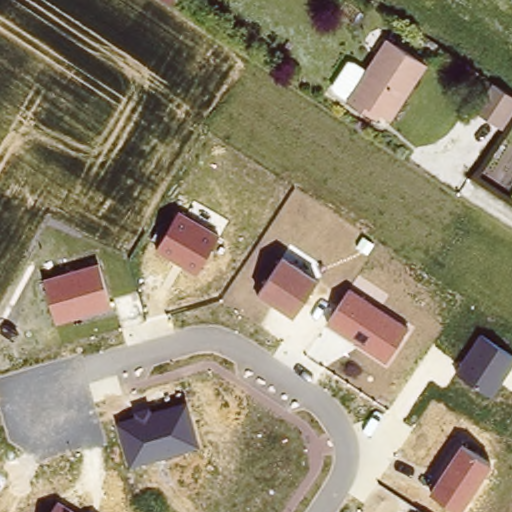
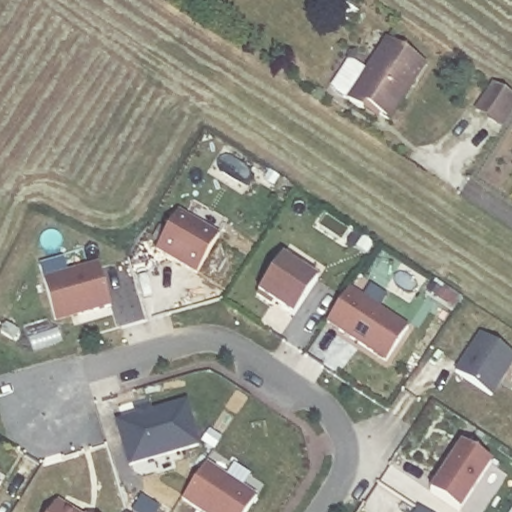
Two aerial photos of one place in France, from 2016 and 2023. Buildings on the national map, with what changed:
unchanged [(159,0),(166,0),(164,3),(159,0)]
unchanged [(361,109),(347,100),(388,39),(424,63),(388,115),(378,108),(372,117),(361,109)]
unchanged [(509,97),(512,98),(512,121),(506,130),(492,121),(509,97)]
unchanged [(157,252),(179,212),(218,235),(196,273),(157,252)]
unchanged [(258,296),(282,257),(318,280),(292,317),(258,296)]
unchanged [(43,280),(99,263),(110,304),(56,322),(43,280)]
unchanged [(347,288),(407,327),(387,362),(325,323),(347,288)]
unchanged [(480,335),(512,355),(512,365),(493,395),(455,372),(480,335)]
unchanged [(114,419),(187,397),(200,446),(127,465),(114,419)]
unchanged [(430,492),(460,446),(491,467),(460,512),(458,512),(430,492)]
new [(206,464),(257,497),(247,512),(201,512),(182,500),(206,464)]
unchanged [(1,483),(0,485),(0,482),(1,483)]
unchanged [(57,500),(79,512),(50,512),(57,500)]
unchanged [(418,509),(424,512),(417,512),(418,509)]

